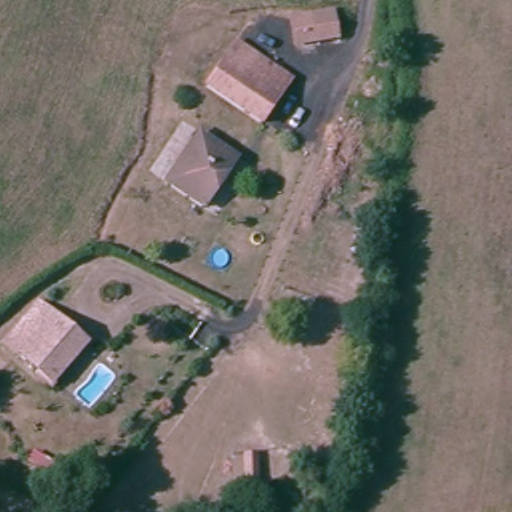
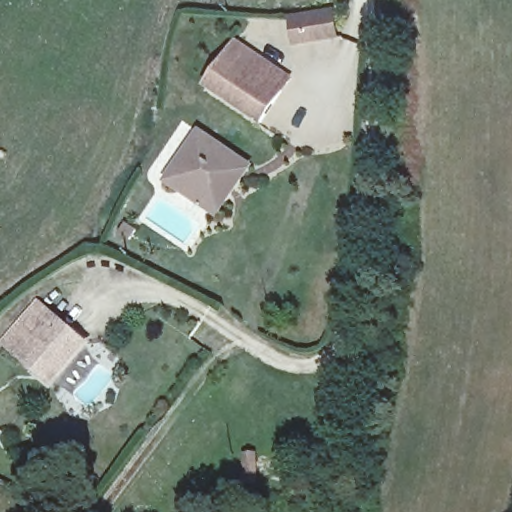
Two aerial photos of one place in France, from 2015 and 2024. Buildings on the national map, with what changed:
unchanged [(301,13),(303,12),(324,11),(341,11),(342,37),(326,38),(303,40),(301,13)]
unchanged [(241,44),(295,77),(265,122),(208,84),(236,41),(241,44)]
unchanged [(208,205),(206,209),(166,185),(201,131),(240,156),(208,205)]
unchanged [(45,307),(74,328),(40,373),(8,347),(42,306),(45,307)]
unchanged [(74,328),(91,341),(57,386),(40,373),(74,328)]
unchanged [(252,491),(248,512),(236,512),(238,488),(252,491)]

